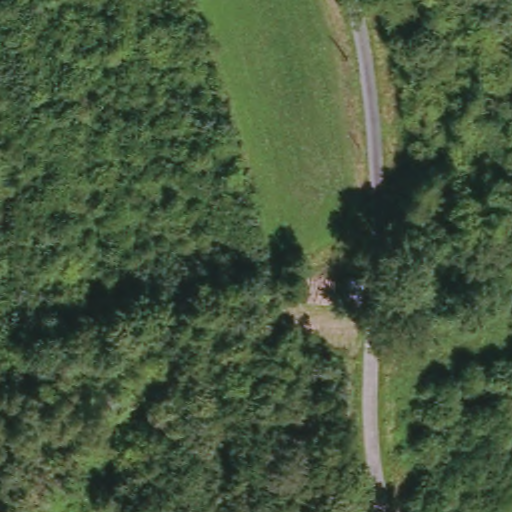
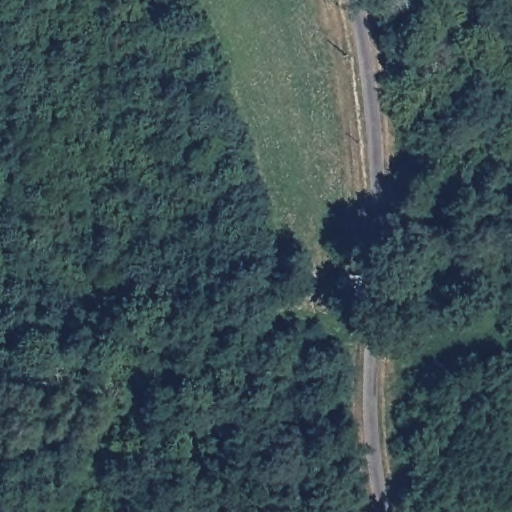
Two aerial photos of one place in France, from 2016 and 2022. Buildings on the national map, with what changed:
unchanged [(365,273),(351,272),(352,247),(367,247),(365,273)]

